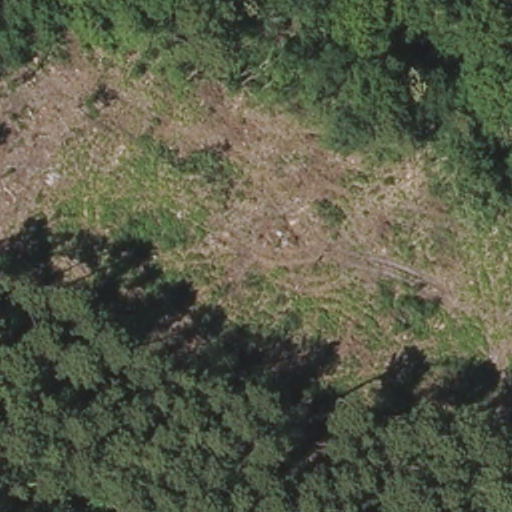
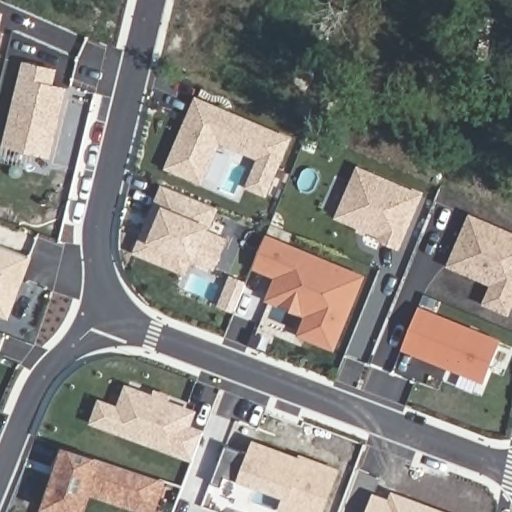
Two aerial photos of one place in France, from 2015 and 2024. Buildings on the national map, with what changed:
new [(26,64),(54,71),(50,86),(65,89),(49,154),(6,144),(26,64)]
new [(199,98),(224,109),(222,112),(233,117),(234,113),(289,138),(265,193),(250,186),(263,157),(221,139),(203,180),(169,165),(199,98)]
new [(359,168),(421,194),(398,246),(381,238),(383,235),(339,215),(359,168)]
new [(147,229),(152,231),(155,223),(151,221),(165,187),(216,209),(206,234),(224,242),(213,269),(168,250),(161,264),(137,253),(147,229)]
new [(471,218),(512,234),(512,308),(512,309),(491,301),(501,273),(478,264),(474,273),(454,265),(471,218)]
new [(268,238),(364,278),(336,346),(309,334),(322,305),(279,288),(284,275),(258,263),(268,238)]
new [(6,316),(0,314),(0,247),(29,257),(6,316)]
new [(420,308),(500,341),(484,379),(422,353),(404,346),(406,341),(420,308)]
new [(194,411),(189,426),(204,432),(194,458),(113,427),(94,420),(101,400),(119,408),(128,386),(194,411)]
new [(248,452),(247,456),(252,458),(258,443),(303,460),(304,458),(339,470),(324,512),(291,512),(284,509),(289,496),(245,479),(244,482),(228,477),(224,486),(214,483),(229,444),(248,452)]
new [(153,512),(142,512),(90,496),(84,512),(44,512),(64,446),(96,457),(167,482),(153,512)]
new [(392,491),(446,512),(366,512),(373,493),(389,499),(392,491)]

